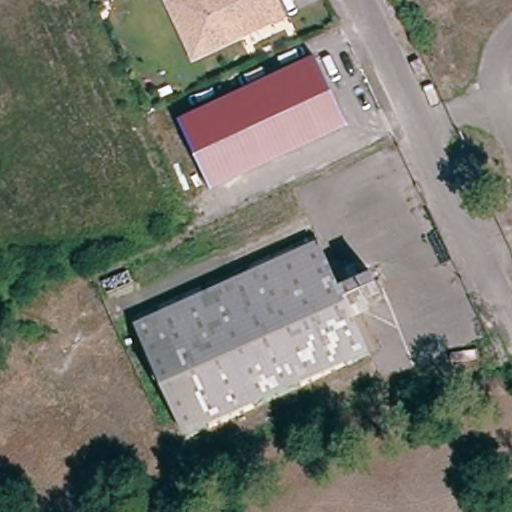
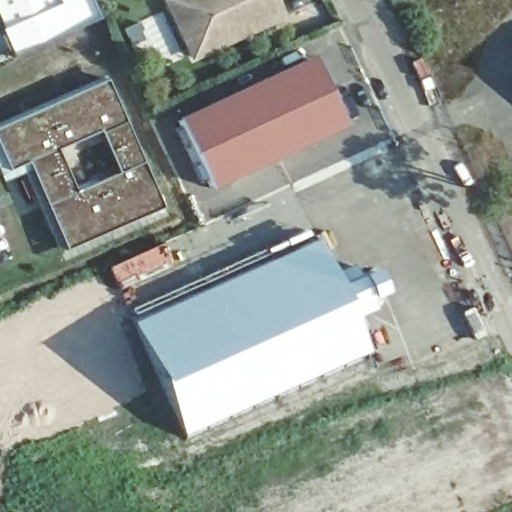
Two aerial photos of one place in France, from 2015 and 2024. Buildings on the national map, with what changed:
new [(91,0),(99,19),(11,55),(0,29),(0,0),(91,0)]
unchanged [(178,24),(169,2),(174,0),(274,0),(282,18),(240,38),(195,59),(186,41),(178,24)]
unchanged [(346,126),(340,129),(210,190),(179,122),(310,62),(315,59),(324,78),(338,108),(346,126)]
new [(2,183),(0,177),(0,121),(105,75),(163,207),(66,249),(31,169),(2,183)]
unchanged [(192,431),(139,319),(319,234),(341,280),(372,266),(382,287),(351,301),(372,347),(192,431)]

